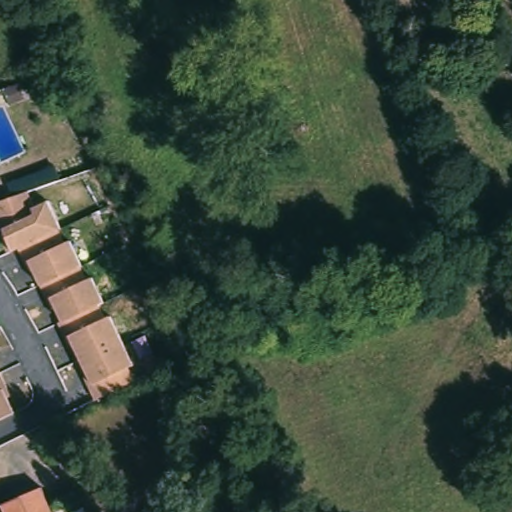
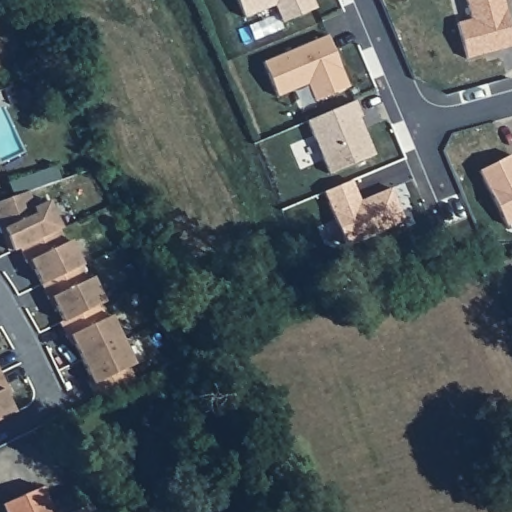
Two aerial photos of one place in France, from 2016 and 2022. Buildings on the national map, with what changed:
new [(282,21),(276,5),(242,17),(236,0),(311,0),(314,7),(282,21)]
new [(457,22),(471,19),(467,0),(503,0),(512,38),(512,47),(465,58),(457,22)]
new [(307,84),(277,96),(262,62),(326,35),(349,87),(314,102),(307,84)]
new [(327,174),(305,121),(355,101),(361,116),(359,117),(374,154),(327,174)]
new [(512,157),(512,222),(505,225),(479,172),(511,155),(512,157)]
new [(352,180),(359,200),(390,188),(402,221),(344,245),(323,193),(352,180)]
unchanged [(28,193),(33,207),(48,202),(63,242),(69,240),(85,280),(92,276),(104,303),(98,306),(105,319),(112,315),(134,365),(128,367),(133,380),(93,402),(81,379),(87,376),(71,343),(64,345),(56,323),(61,321),(53,305),(49,308),(34,271),(27,273),(18,249),(12,251),(10,247),(5,249),(0,234),(0,203),(28,193)]
unchanged [(12,397),(10,399),(15,413),(0,420),(0,371),(12,397)]
unchanged [(6,512),(3,507),(41,491),(50,512),(6,512)]

